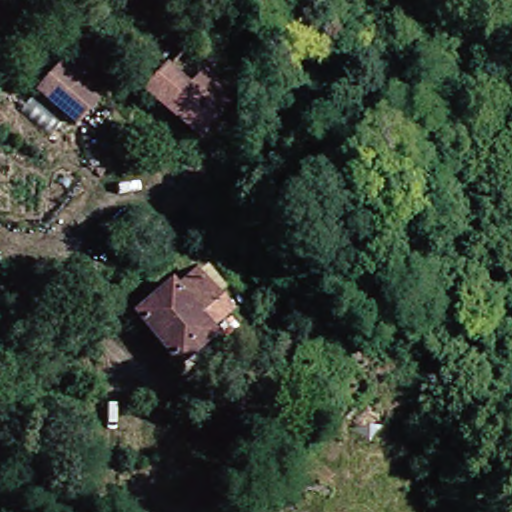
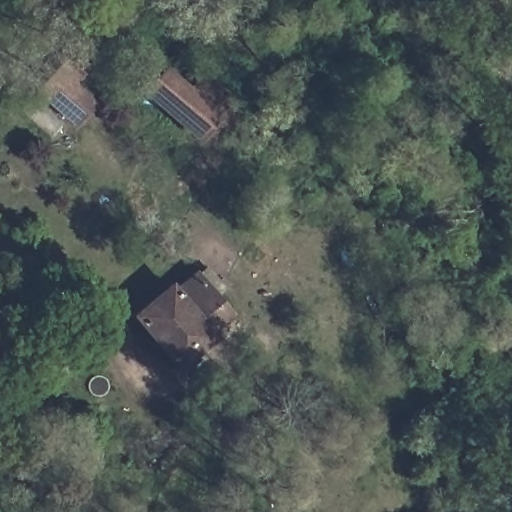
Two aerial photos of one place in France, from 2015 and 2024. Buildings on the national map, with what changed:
unchanged [(67,121),(44,97),(32,85),(53,64),(67,77),(91,99),(67,121)]
unchanged [(132,94),(157,65),(182,82),(195,68),(226,98),(212,115),(190,140),(132,94)]
unchanged [(164,284),(169,290),(184,277),(213,311),(197,325),(209,340),(172,371),(122,319),(164,284)]

